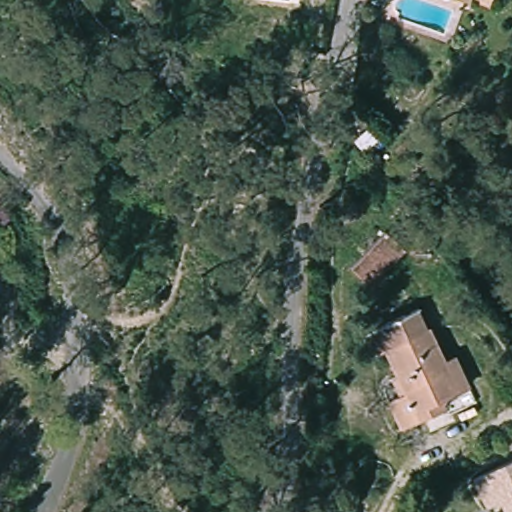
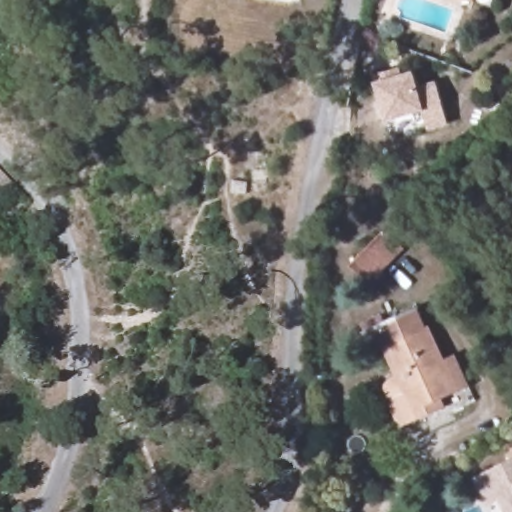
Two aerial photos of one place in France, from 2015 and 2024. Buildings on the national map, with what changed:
unchanged [(474,7),(458,0),(477,0),(474,7)]
new [(402,75),(413,72),(419,89),(434,82),(448,125),(428,132),(424,112),(385,123),(374,85),(372,76),(399,67),(402,75)]
unchanged [(400,246),(380,266),(386,273),(370,288),(348,265),(385,229),(400,246)]
unchanged [(419,306),(428,327),(435,322),(451,357),(461,351),(475,389),(447,401),(453,412),(406,438),(386,402),(400,396),(393,382),(379,387),(361,332),(419,306)]
unchanged [(512,512),(505,512),(500,503),(483,512),(469,481),(512,460),(512,512)]

